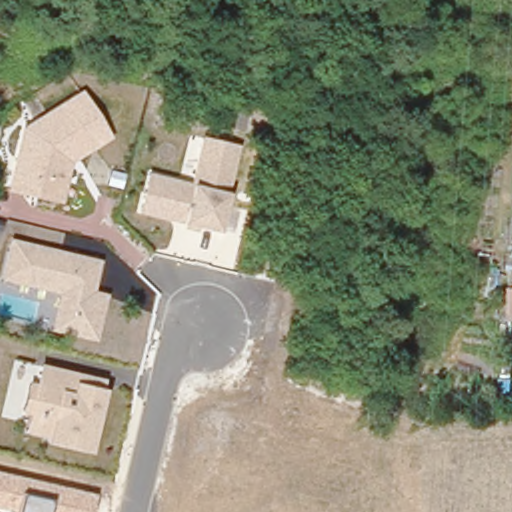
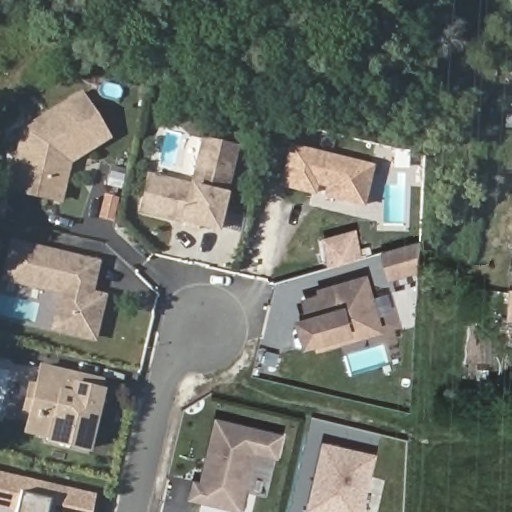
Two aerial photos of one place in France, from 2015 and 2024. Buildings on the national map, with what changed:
unchanged [(90,135),(96,147),(74,158),(63,205),(5,192),(20,125),(81,89),(106,127),(90,135)]
unchanged [(220,236),(136,217),(146,173),(188,180),(198,136),(239,145),(220,236)]
new [(280,186),(289,143),(375,163),(365,207),(324,197),(326,186),(318,184),(315,194),(280,186)]
unchanged [(94,289),(113,296),(99,341),(50,325),(58,298),(0,279),(0,268),(10,236),(104,259),(94,289)]
demolished [(512,237),(512,277),(509,237),(512,237)]
new [(383,252),(421,241),(421,271),(392,279),(383,252)]
new [(370,273),(387,331),(319,351),(318,345),(309,348),(301,319),(308,317),(303,299),(321,293),(319,288),(370,273)]
unchanged [(512,274),(512,295),(510,295),(512,274)]
unchanged [(95,454),(19,436),(35,362),(112,382),(95,454)]
new [(259,452),(245,511),(193,500),(197,479),(204,480),(219,418),(288,433),(282,457),(259,452)]
new [(366,512),(318,512),(309,510),(326,441),(381,453),(366,512)]
unchanged [(92,512),(11,512),(11,511),(0,509),(0,473),(95,496),(92,512)]

